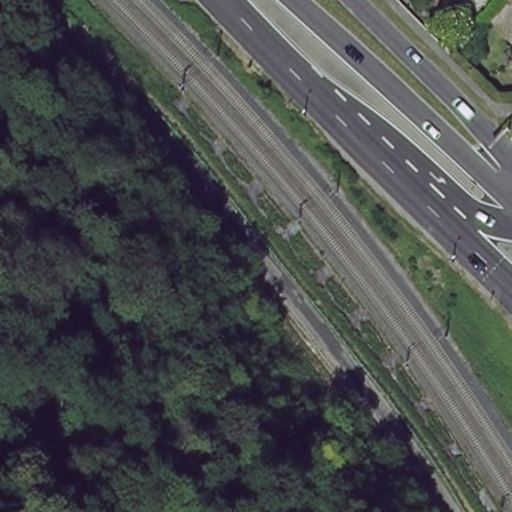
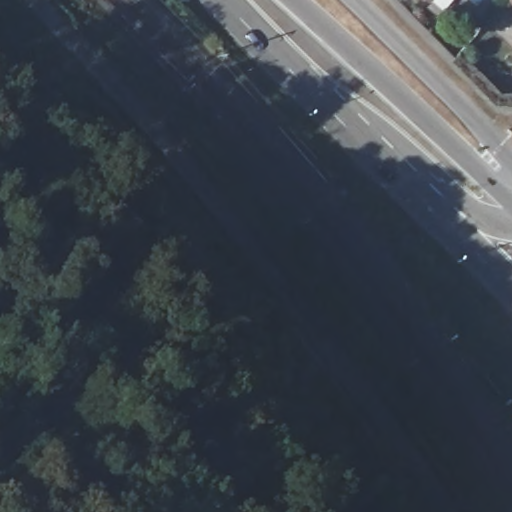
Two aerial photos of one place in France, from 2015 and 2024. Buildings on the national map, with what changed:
unchanged [(512,0),(512,2),(510,0),(512,0)]

